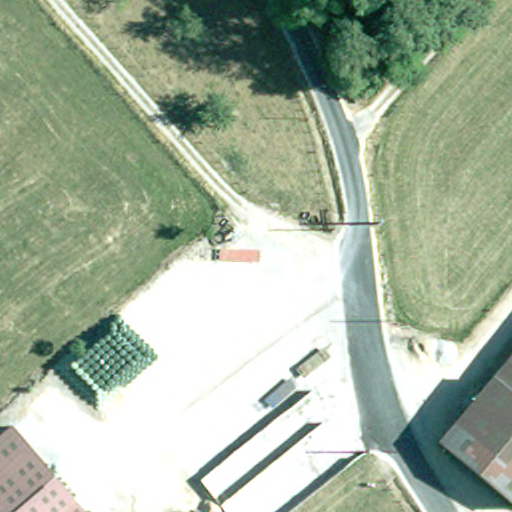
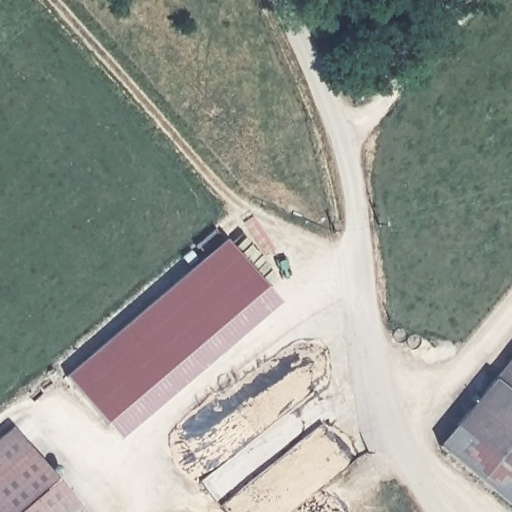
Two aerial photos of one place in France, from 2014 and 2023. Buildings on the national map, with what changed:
new [(118,436),(66,375),(226,239),(278,300),(118,436)]
unchanged [(512,359),(512,504),(441,445),(512,359)]
unchanged [(0,440),(18,425),(91,512),(0,512),(0,440)]

